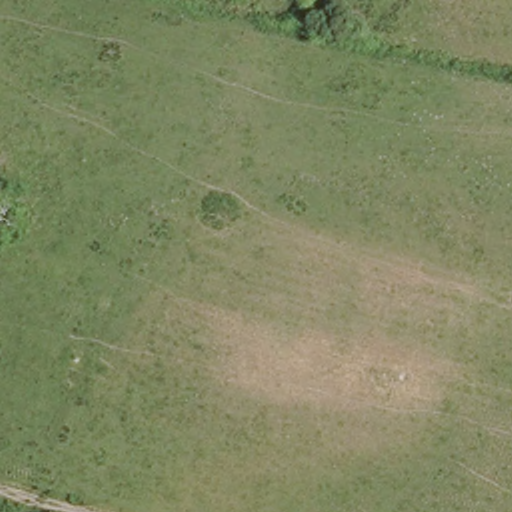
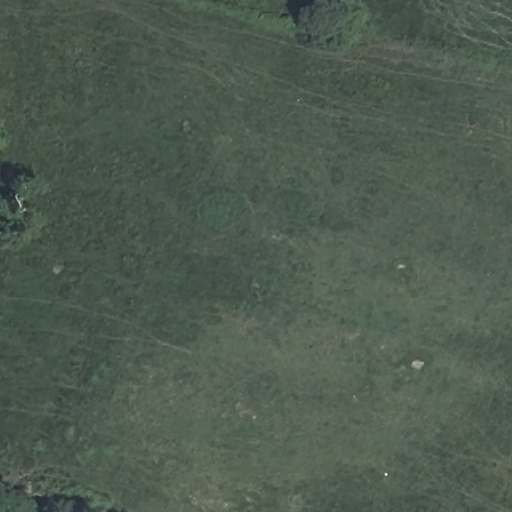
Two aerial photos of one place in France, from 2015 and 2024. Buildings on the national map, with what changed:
[]

